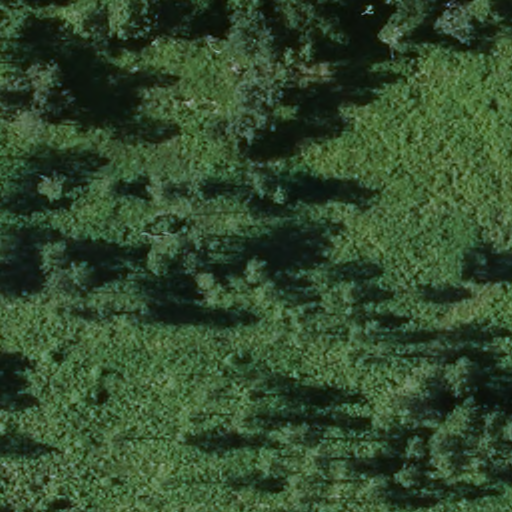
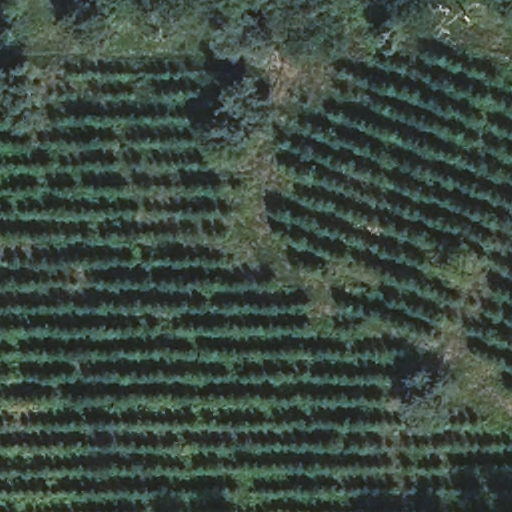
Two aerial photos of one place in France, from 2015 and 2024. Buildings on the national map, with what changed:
[]

